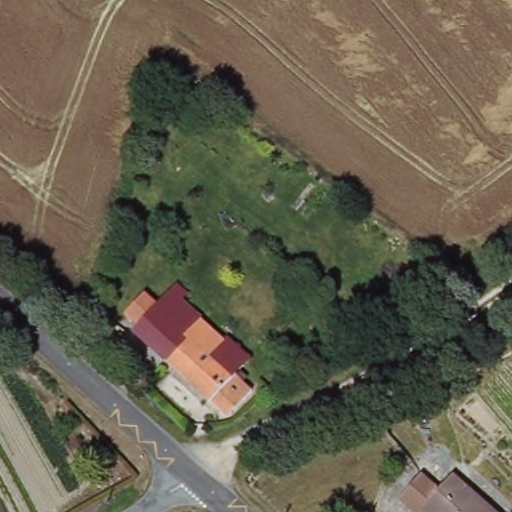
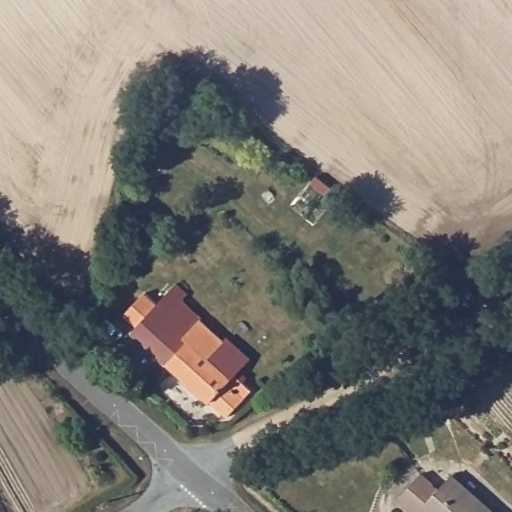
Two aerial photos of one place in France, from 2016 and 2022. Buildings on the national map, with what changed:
unchanged [(255,384),(230,413),(137,327),(179,279),(190,287),(182,299),(205,317),(252,358),(240,372),(255,384)]
unchanged [(399,495),(424,469),(446,486),(459,474),(500,512),(418,512),(399,495)]

